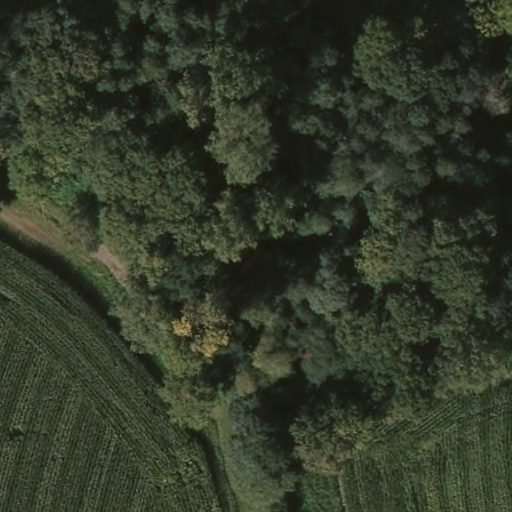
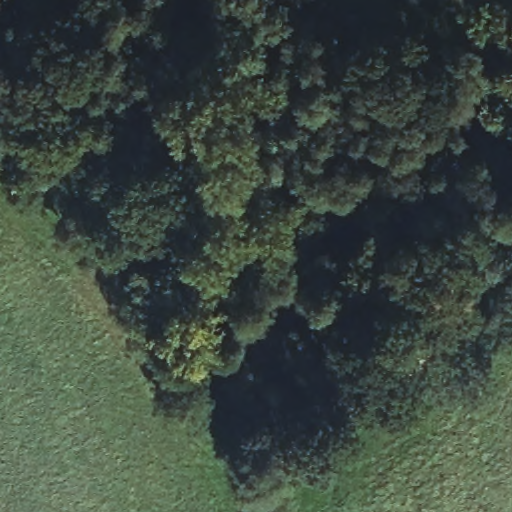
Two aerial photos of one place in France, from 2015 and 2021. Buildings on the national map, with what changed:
[]

